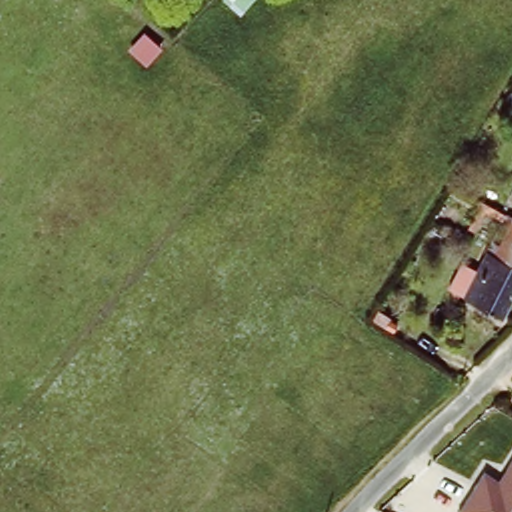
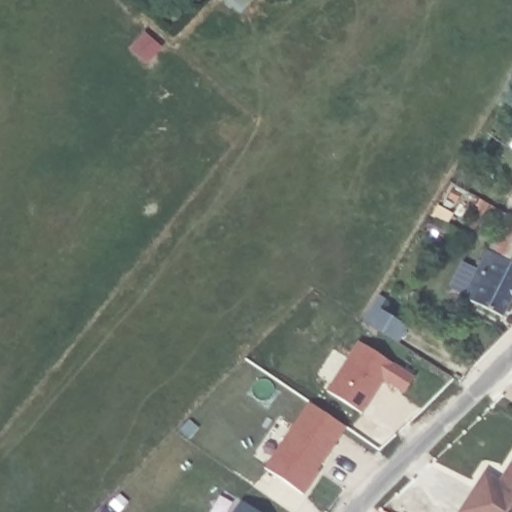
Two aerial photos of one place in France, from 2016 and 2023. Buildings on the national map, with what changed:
unchanged [(472,297),(485,273),(476,269),(487,247),(496,251),(512,221),(512,301),(505,315),(472,297)]
new [(358,342),(413,378),(404,393),(383,380),(361,414),(326,392),(358,342)]
new [(302,493),(264,467),(308,403),(346,429),(302,493)]
unchanged [(512,512),(457,512),(483,471),(498,480),(512,458),(512,512)]
new [(241,501),(257,512),(233,512),(241,501)]

